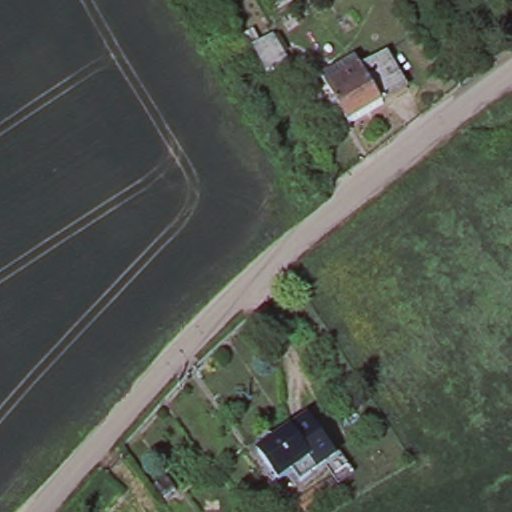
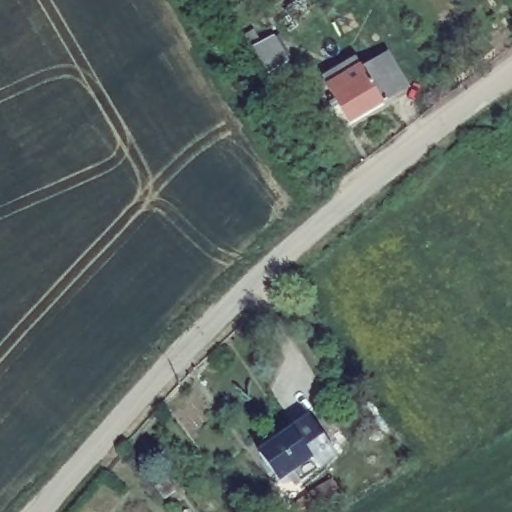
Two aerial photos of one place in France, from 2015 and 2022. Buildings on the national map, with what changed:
unchanged [(288,62),(268,74),(253,49),(273,36),(288,62)]
unchanged [(388,54),(408,88),(383,103),(369,80),(363,69),(388,54)]
unchanged [(363,69),(369,80),(383,103),(384,105),(349,125),(343,112),(337,115),(329,102),(335,100),(328,87),(362,67),(363,69)]
unchanged [(279,482),(275,485),(263,467),(267,464),(259,454),(263,452),(261,450),(261,447),(262,444),(264,442),(266,440),(268,440),(269,439),(271,439),(272,439),(273,440),(275,441),(276,441),(309,419),(336,456),(301,481),(295,486),(288,476),(279,482)]
unchanged [(156,486),(168,478),(176,490),(165,498),(156,486)]
unchanged [(291,506),(319,487),(331,479),(341,495),(329,502),(315,512),(295,512),(291,506)]

